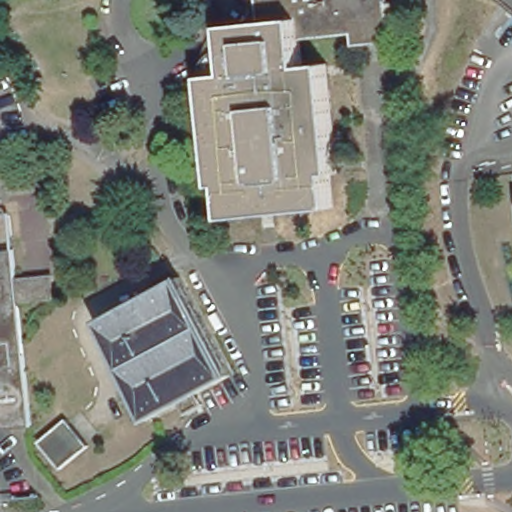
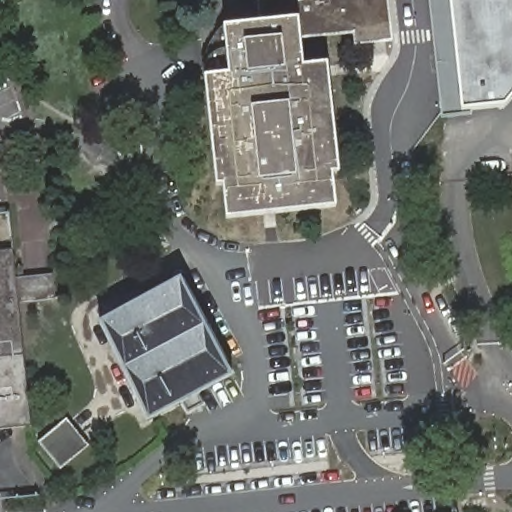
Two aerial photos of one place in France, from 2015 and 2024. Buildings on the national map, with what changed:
unchanged [(225,74),(220,26),(255,22),(253,0),(383,0),(388,41),(380,42),(356,44),(350,45),(348,32),(296,38),(300,65),(323,63),(335,172),(328,174),(331,207),(270,215),(260,216),(221,219),(218,186),(211,186),(200,76),(225,74)]
new [(497,107),(457,115),(445,0),(512,0),(512,89),(497,107)]
unchanged [(196,40),(195,29),(220,26),(225,74),(200,76),(196,40)]
new [(511,245),(512,245),(512,247),(511,245)]
unchanged [(0,429),(0,250),(12,248),(16,278),(25,277),(54,275),(56,300),(19,303),(32,425),(0,429)]
unchanged [(100,321),(181,277),(202,316),(212,335),(232,375),(199,393),(182,402),(152,418),(100,321)]
unchanged [(91,444),(64,467),(41,441),(69,417),(91,444)]

